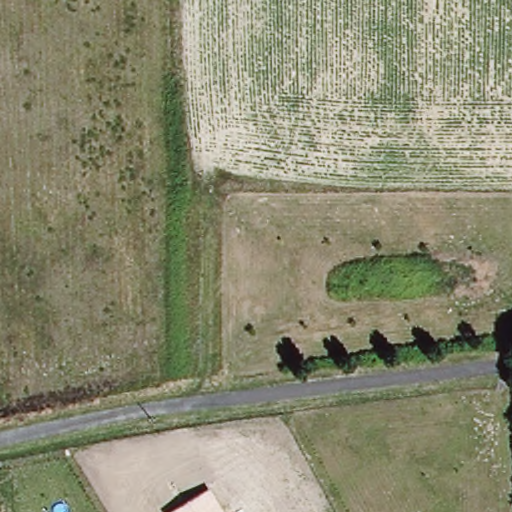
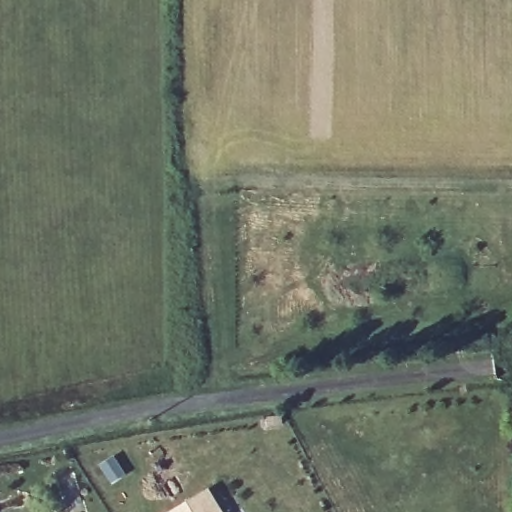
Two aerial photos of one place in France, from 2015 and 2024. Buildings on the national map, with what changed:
unchanged [(169,512),(209,488),(223,512),(169,512)]

